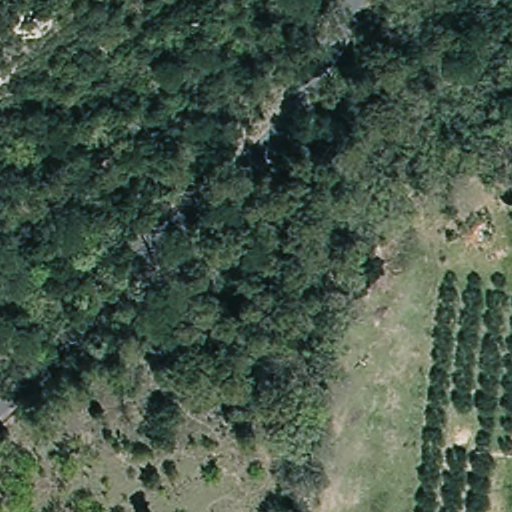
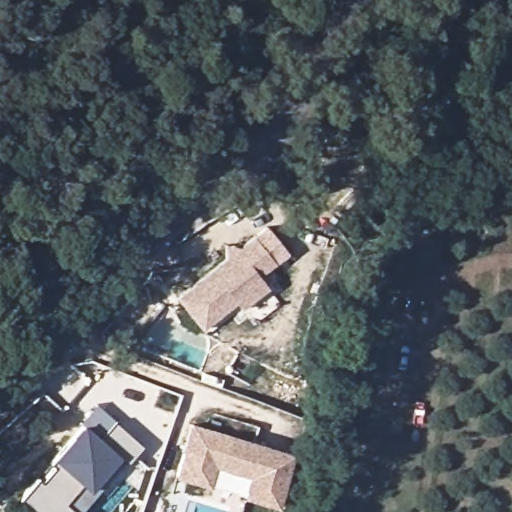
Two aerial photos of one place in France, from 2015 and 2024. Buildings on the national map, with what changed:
new [(265,230),(285,255),(256,278),(265,290),(239,311),(234,305),(201,332),(176,301),(265,230)]
new [(31,512),(18,500),(36,480),(40,483),(54,467),(49,463),(52,458),(81,425),(79,424),(96,405),(114,422),(143,448),(127,466),(124,463),(78,512),(31,512)]
new [(214,466),(207,488),(174,477),(190,423),(291,453),(275,508),(241,497),(247,478),(214,466)]

